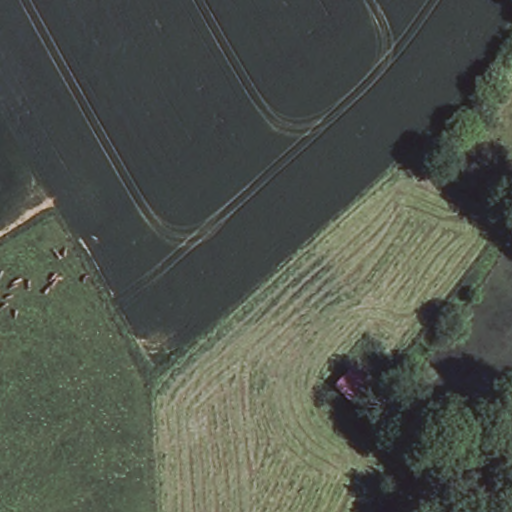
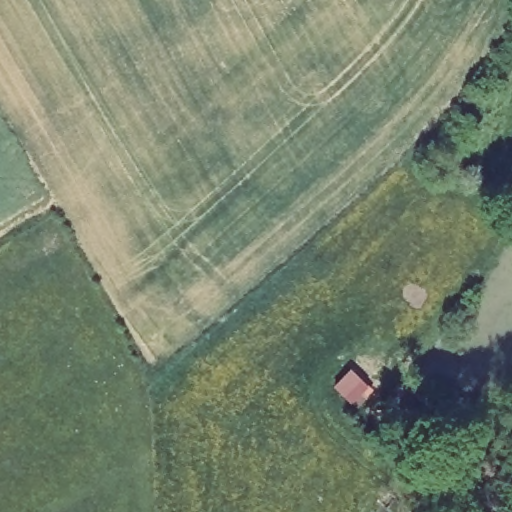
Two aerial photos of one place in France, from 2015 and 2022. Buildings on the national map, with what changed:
[]

